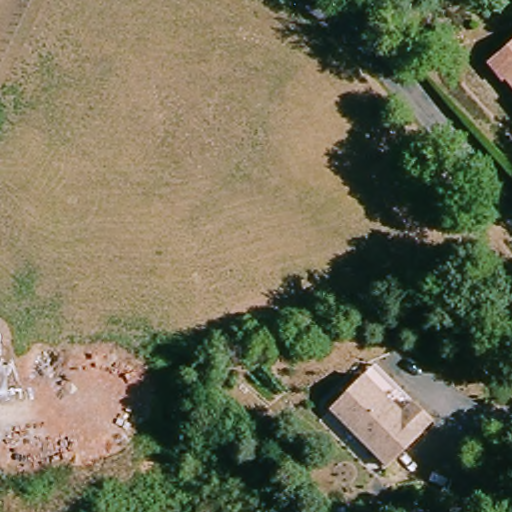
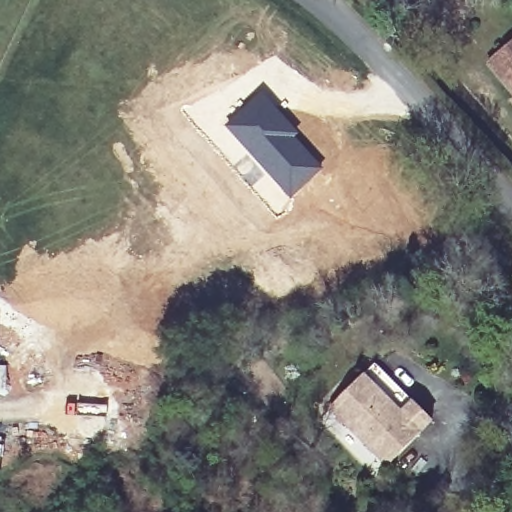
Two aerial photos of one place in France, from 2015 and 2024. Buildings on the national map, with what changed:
unchanged [(503,81),(490,63),(512,46),(512,86),(506,79),(503,81)]
new [(262,90),(300,133),(297,136),(324,167),(276,211),(253,184),(257,181),(268,193),(274,188),(222,124),(262,90)]
unchanged [(371,379),(382,369),(418,407),(437,426),(393,470),(382,459),(337,414),(371,379)]

